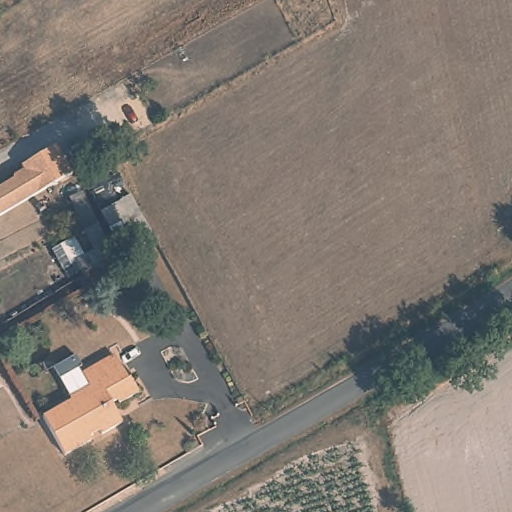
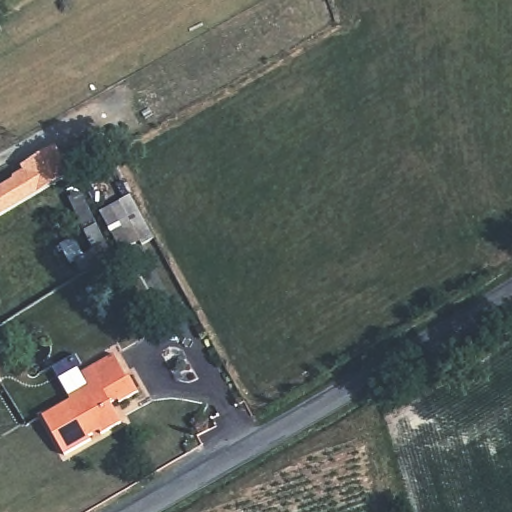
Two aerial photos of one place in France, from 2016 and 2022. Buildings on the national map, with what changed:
unchanged [(89,139),(97,152),(78,162),(71,150),(89,139)]
unchanged [(16,176),(27,170),(24,165),(58,145),(75,172),(39,194),(0,216),(0,188),(15,180),(16,176)]
unchanged [(112,257),(83,275),(78,263),(95,255),(72,202),(84,196),(112,257)]
unchanged [(140,245),(122,255),(104,220),(122,210),(140,245)]
unchanged [(121,375),(125,375),(134,391),(117,401),(116,398),(107,402),(118,421),(99,432),(96,428),(86,433),(88,438),(62,453),(39,415),(69,398),(72,401),(93,390),(89,380),(83,383),(77,373),(111,355),(121,375)]

